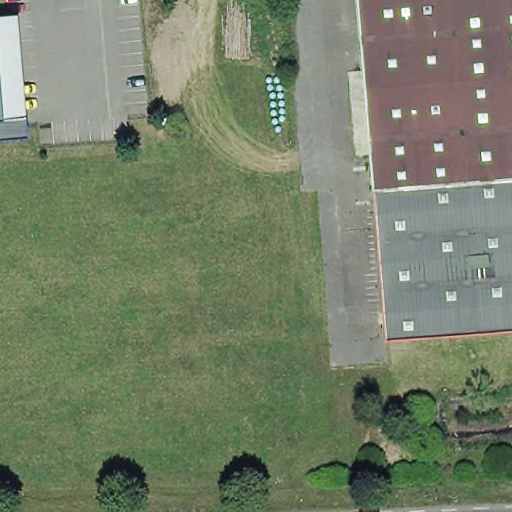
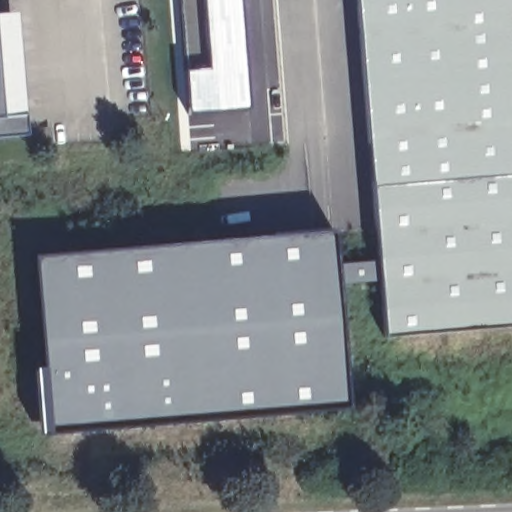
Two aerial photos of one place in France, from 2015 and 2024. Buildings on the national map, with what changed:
unchanged [(512,0),(512,173),(375,185),(368,101),(365,67),(360,0),(512,0)]
unchanged [(5,112),(27,110),(30,131),(0,133),(0,55),(5,112)]
unchanged [(375,185),(512,173),(512,232),(380,243),(375,185)]
unchanged [(380,243),(512,232),(512,323),(387,332),(380,243)]
new [(48,436),(33,259),(332,234),(348,411),(48,436)]

